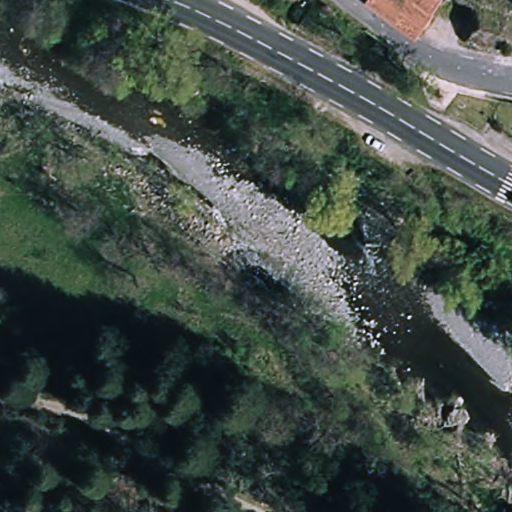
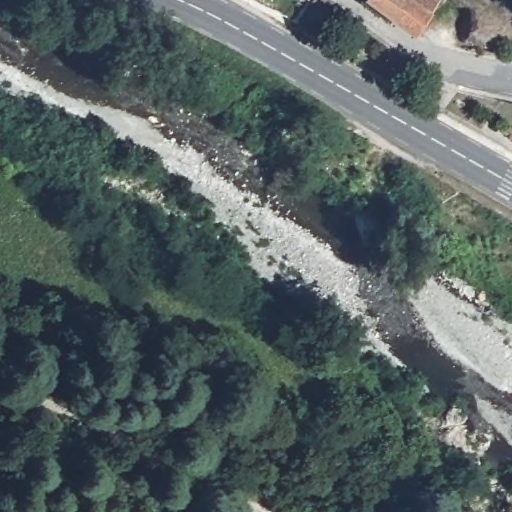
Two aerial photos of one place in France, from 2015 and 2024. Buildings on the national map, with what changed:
unchanged [(392,17),(370,0),(404,0),(392,17)]
unchanged [(404,0),(439,0),(435,8),(415,36),(392,17),(404,0)]

